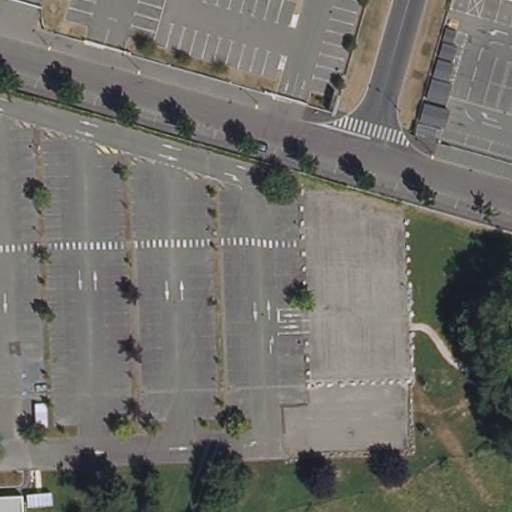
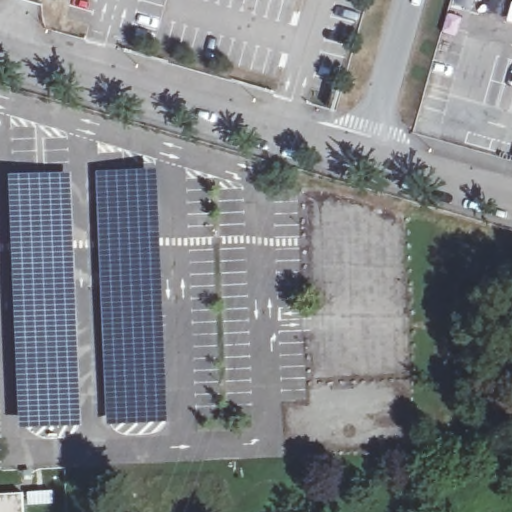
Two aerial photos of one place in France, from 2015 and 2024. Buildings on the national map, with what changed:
new [(157,167),(165,291),(170,422),(105,427),(97,263),(95,170),(157,167)]
new [(72,172),(82,427),(19,429),(12,282),(8,172),(72,172)]
unchanged [(23,498),(24,512),(0,512),(0,499),(23,498)]

